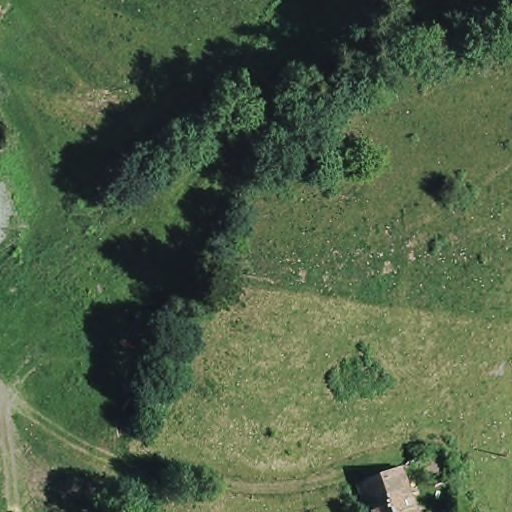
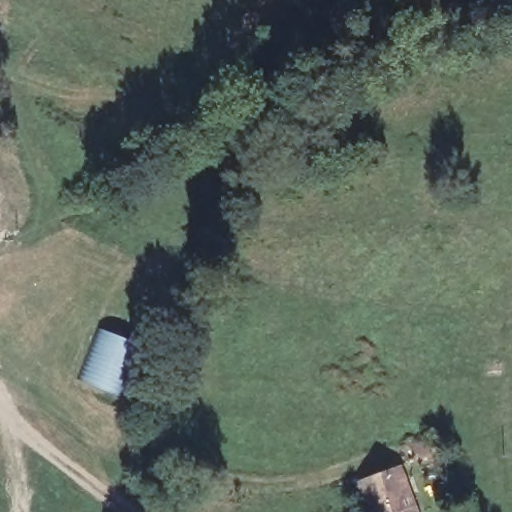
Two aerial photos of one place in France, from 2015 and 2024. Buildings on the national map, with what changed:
new [(97,382),(83,377),(102,331),(133,344),(113,393),(102,389),(97,382)]
unchanged [(407,512),(363,512),(352,482),(392,467),(407,512)]

